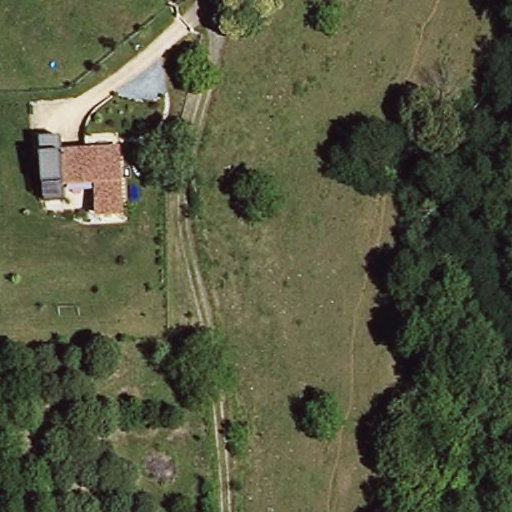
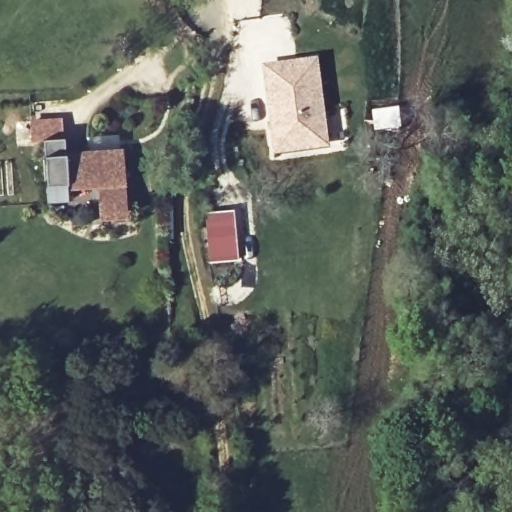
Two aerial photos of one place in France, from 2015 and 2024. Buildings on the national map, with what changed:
new [(318,62),(328,143),(281,149),(271,68),(318,62)]
unchanged [(64,137),(65,148),(123,146),(128,213),(98,215),(97,197),(48,202),(45,137),(64,137)]
new [(232,210),(237,260),(210,262),(205,212),(232,210)]

